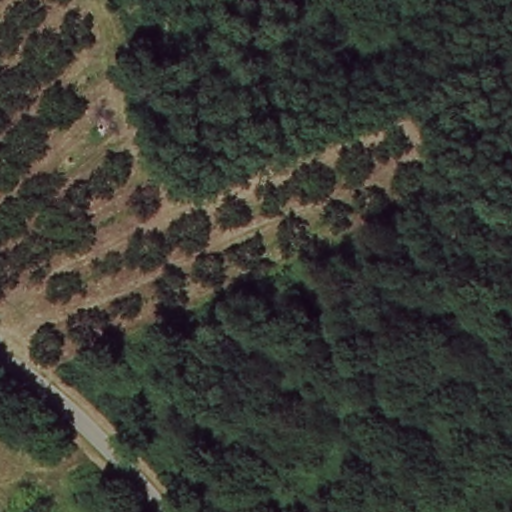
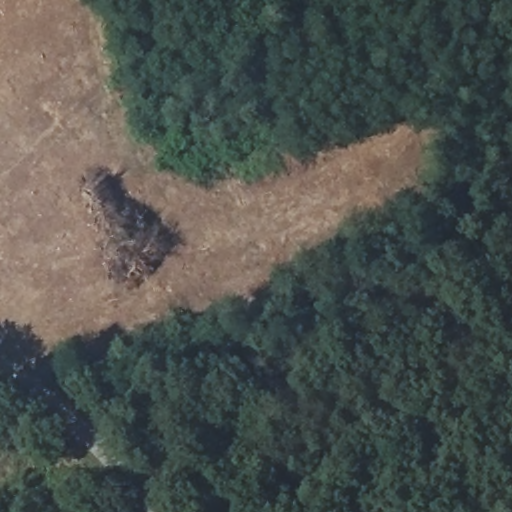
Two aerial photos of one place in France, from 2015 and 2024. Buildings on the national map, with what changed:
unchanged [(29,468),(41,456),(53,468),(40,480),(29,468)]

